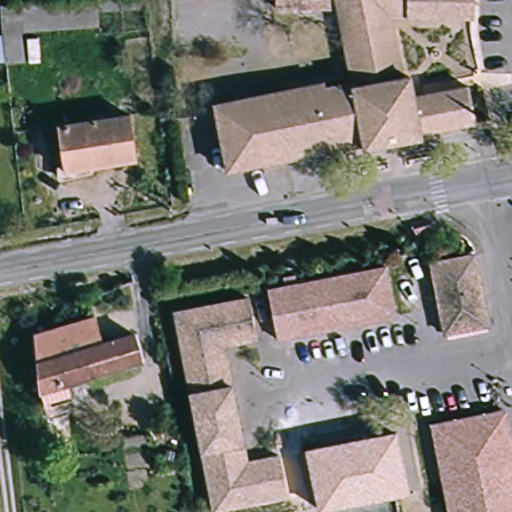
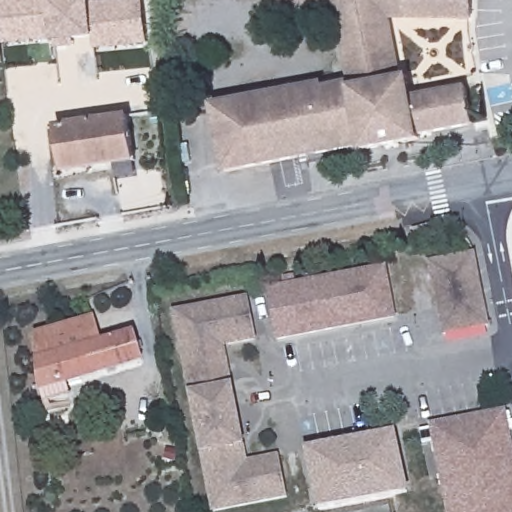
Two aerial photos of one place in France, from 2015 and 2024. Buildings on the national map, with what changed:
new [(95,37),(75,39),(76,46),(55,48),(55,41),(3,45),(0,19),(0,0),(90,0),(90,3),(116,0),(143,0),(149,44),(96,51),(95,37)]
demolished [(93,0),(96,21),(60,27),(55,0),(93,0)]
unchanged [(437,14),(392,16),(403,75),(356,82),(344,9),(282,8),(282,0),(473,0),(475,16),(437,14)]
unchanged [(325,81),(326,87),(356,82),(403,75),(411,73),(415,97),(470,87),(476,124),(422,133),(423,140),(366,150),(365,144),(224,168),(212,101),(325,81)]
unchanged [(57,124),(123,114),(131,159),(65,170),(57,124)]
unchanged [(486,327),(442,333),(438,306),(431,262),(476,255),(486,327)]
unchanged [(393,312),(394,319),(275,337),(267,286),(285,283),(284,275),(296,273),(297,281),(386,268),(393,312)]
unchanged [(260,342),(227,347),(245,463),(277,459),(283,500),(209,511),(178,310),(253,299),(260,342)]
unchanged [(96,319),(101,343),(140,335),(148,363),(143,364),(40,393),(36,360),(33,332),(96,319)]
unchanged [(512,459),(512,512),(444,512),(431,420),(505,409),(512,459)]
unchanged [(407,492),(318,509),(307,448),(397,432),(407,492)]

